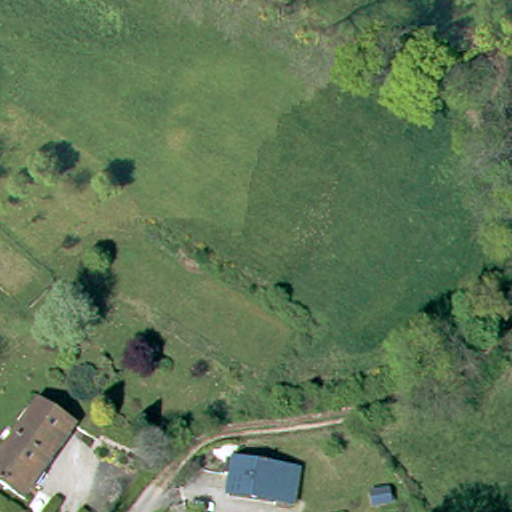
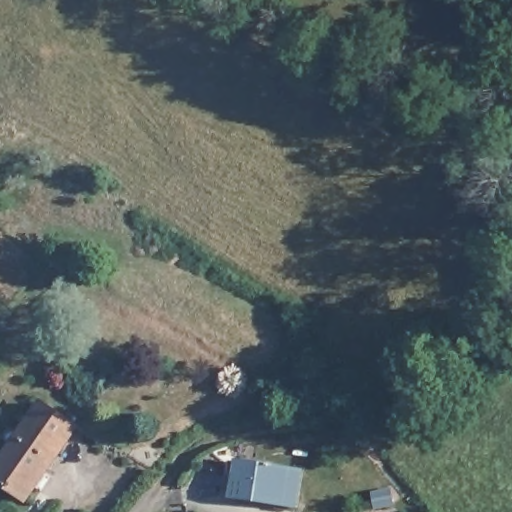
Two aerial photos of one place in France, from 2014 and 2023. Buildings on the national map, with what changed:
unchanged [(45,407),(81,432),(30,506),(0,485),(0,473),(45,407)]
unchanged [(274,499),(231,496),(233,467),(300,472),(297,507),(274,506),(274,499)]

